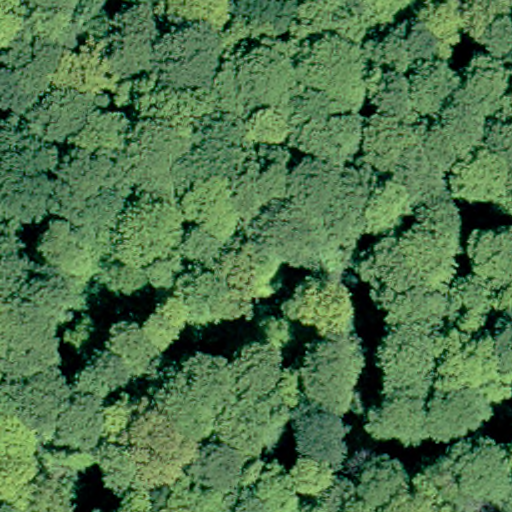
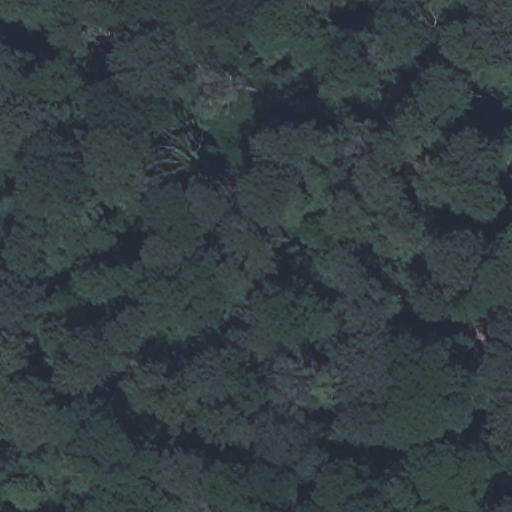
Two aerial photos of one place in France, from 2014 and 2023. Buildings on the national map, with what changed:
[]

